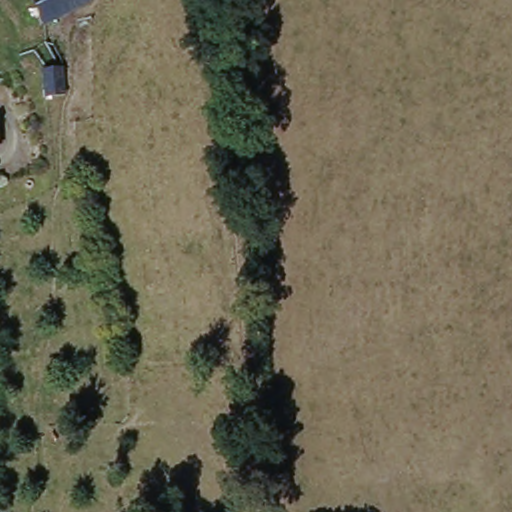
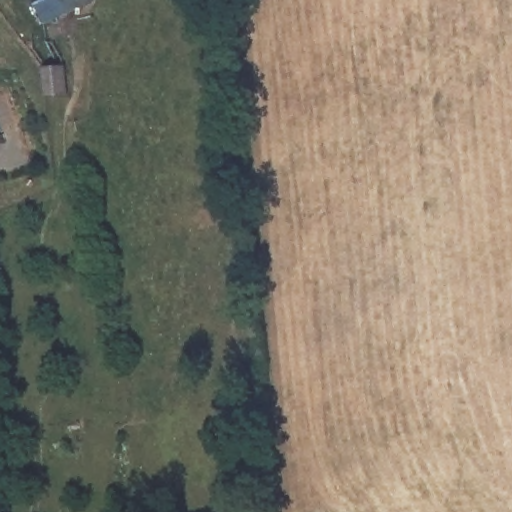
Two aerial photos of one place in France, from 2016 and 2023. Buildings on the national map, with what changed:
unchanged [(49,26),(36,0),(94,0),(97,5),(54,24),(49,26)]
unchanged [(61,74),(64,100),(49,101),(46,76),(61,74)]
unchanged [(102,282),(107,296),(99,299),(96,283),(102,282)]

